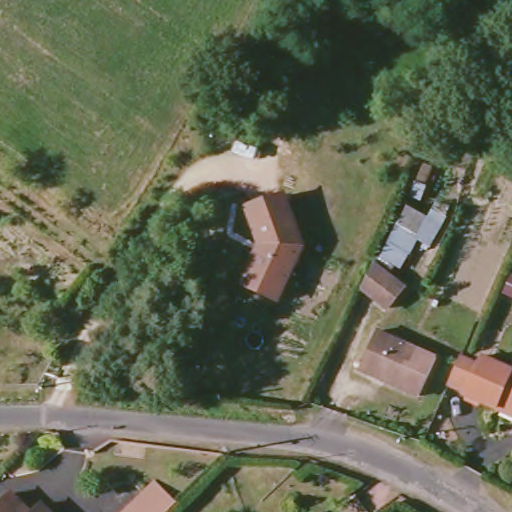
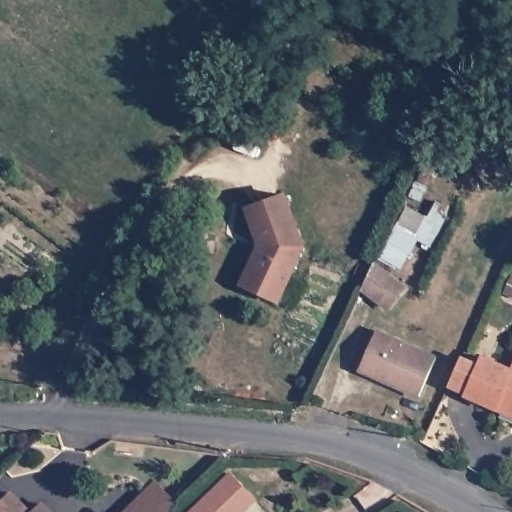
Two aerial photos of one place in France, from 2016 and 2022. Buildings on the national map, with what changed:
unchanged [(454,212),(433,249),(421,242),(399,276),(408,289),(395,309),(365,285),(380,259),(417,188),(454,212)]
unchanged [(273,299),(249,287),(268,249),(264,238),(254,212),(285,200),(290,198),(309,249),(292,285),(283,304),(273,299)]
unchanged [(382,379),(362,370),(379,333),(400,342),(437,359),(421,396),(382,379)]
unchanged [(476,389),(454,380),(463,358),(486,368),(492,354),(512,362),(512,408),(475,393),(476,389)]
new [(243,512),(189,512),(229,473),(256,500),(243,512)]
unchanged [(156,482),(178,503),(168,512),(124,512),(156,482)]
unchanged [(15,494),(31,512),(0,512),(0,507),(15,494)]
unchanged [(47,504),(55,512),(38,512),(47,504)]

